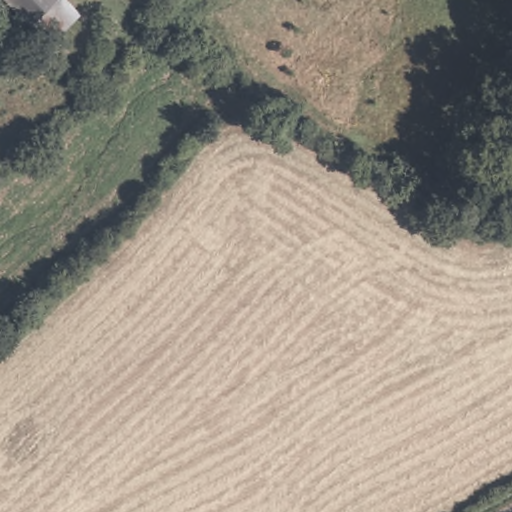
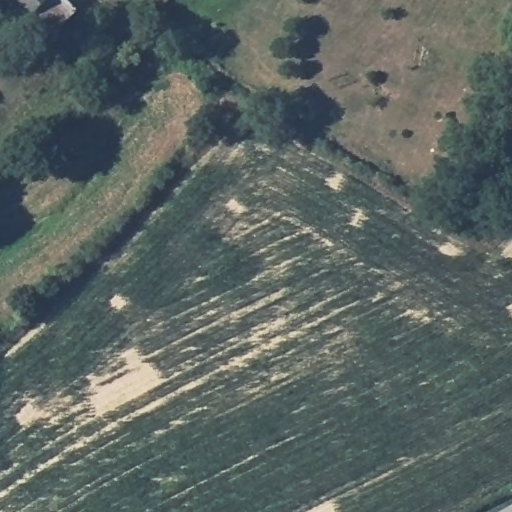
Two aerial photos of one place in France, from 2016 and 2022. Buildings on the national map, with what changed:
unchanged [(51,40),(10,0),(68,0),(80,11),(51,40)]

